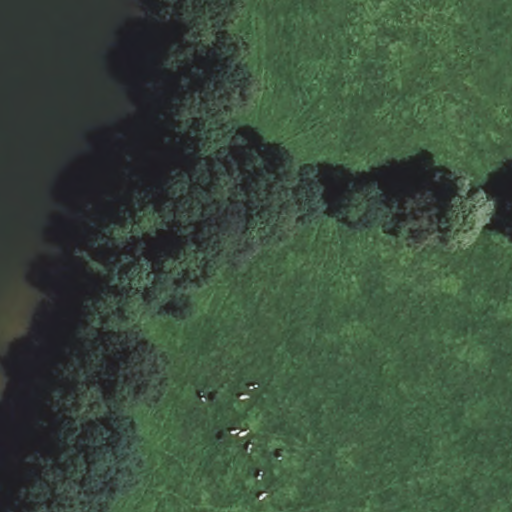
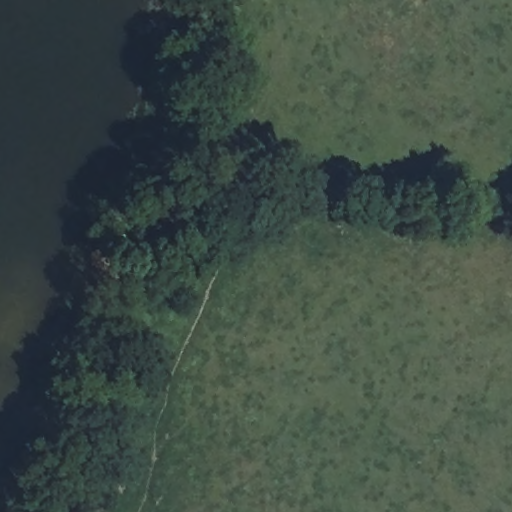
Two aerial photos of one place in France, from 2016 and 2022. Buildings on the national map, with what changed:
[]

